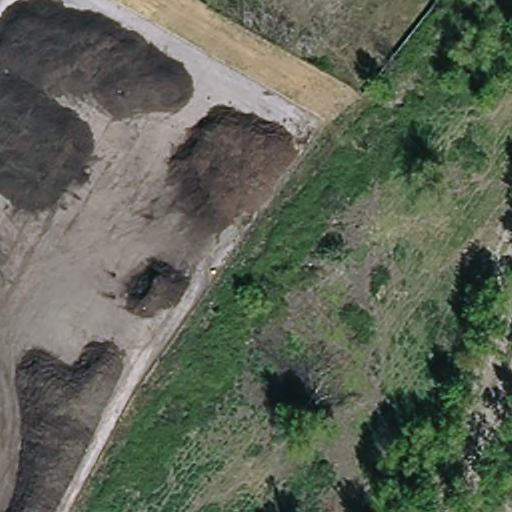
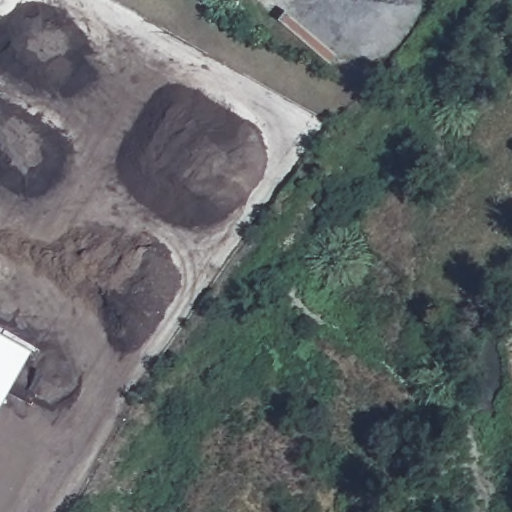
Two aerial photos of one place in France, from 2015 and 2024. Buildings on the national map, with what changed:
new [(0,337),(31,355),(0,413),(0,337)]

